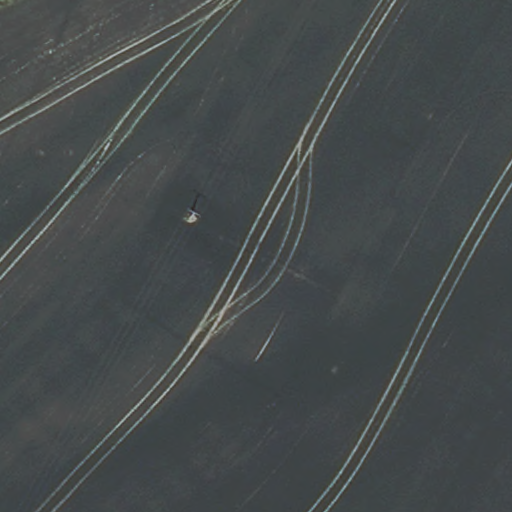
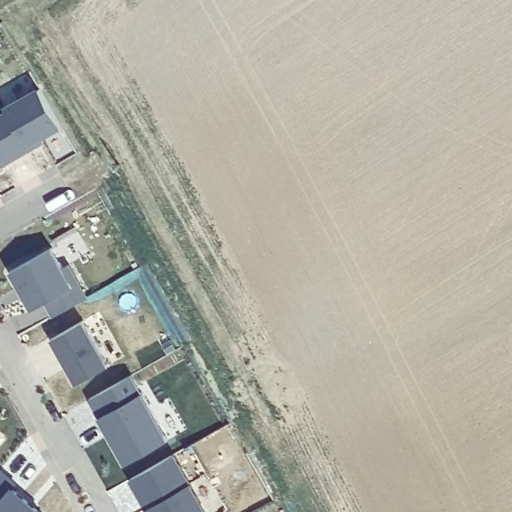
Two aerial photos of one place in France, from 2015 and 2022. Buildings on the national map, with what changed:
new [(0,160),(0,120),(10,114),(7,110),(42,91),(62,128),(30,147),(32,151),(4,167),(0,160)]
new [(30,147),(42,139),(45,143),(32,151),(30,147)]
new [(72,286),(80,282),(87,298),(52,317),(42,304),(34,309),(10,269),(53,247),(72,286)]
new [(93,338),(110,330),(125,356),(110,365),(77,383),(52,339),(84,321),(93,338)]
new [(90,402),(132,379),(175,454),(129,478),(90,402)]
new [(0,438),(2,440),(0,442),(0,438)]
new [(149,512),(129,478),(175,454),(209,512),(149,512)]
new [(15,491),(39,512),(0,512),(0,473),(1,472),(18,487),(15,491)]

